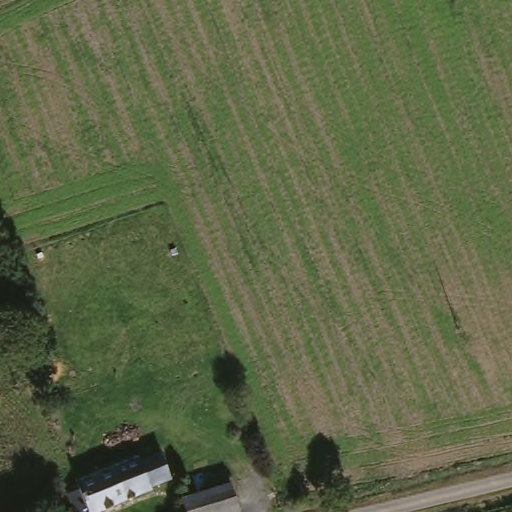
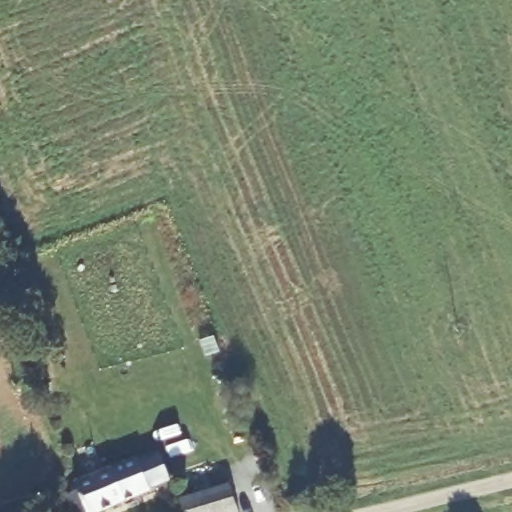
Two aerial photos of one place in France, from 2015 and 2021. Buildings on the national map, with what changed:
unchanged [(86,512),(79,496),(78,494),(76,488),(90,480),(87,474),(139,455),(151,450),(152,456),(172,449),(181,473),(165,480),(167,485),(89,512),(86,512)]
unchanged [(194,512),(189,493),(235,480),(245,512),(194,512)]

